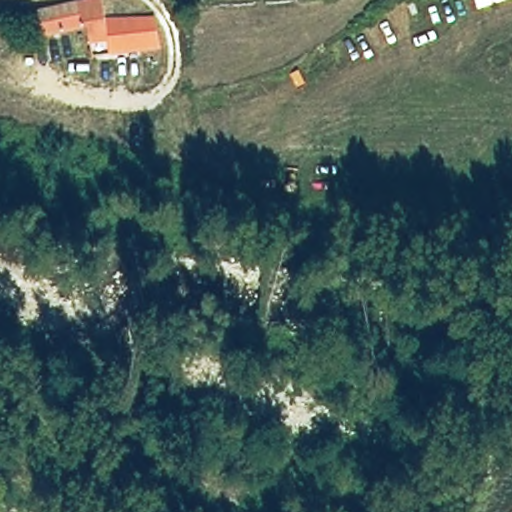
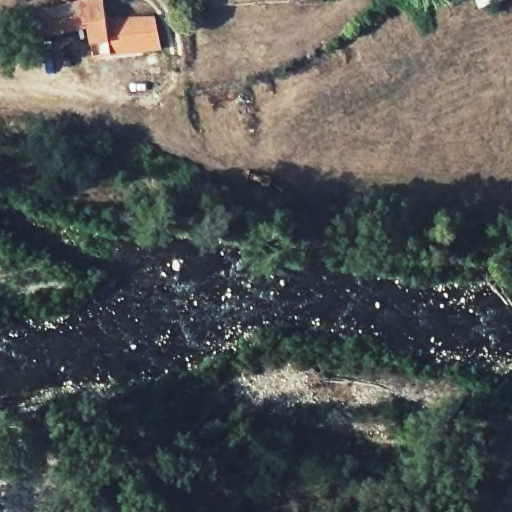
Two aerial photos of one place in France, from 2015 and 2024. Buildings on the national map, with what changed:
unchanged [(103,0),(105,15),(149,14),(157,45),(88,53),(83,27),(77,2),(92,0),(103,0)]
unchanged [(36,12),(77,2),(83,27),(42,37),(36,12)]

